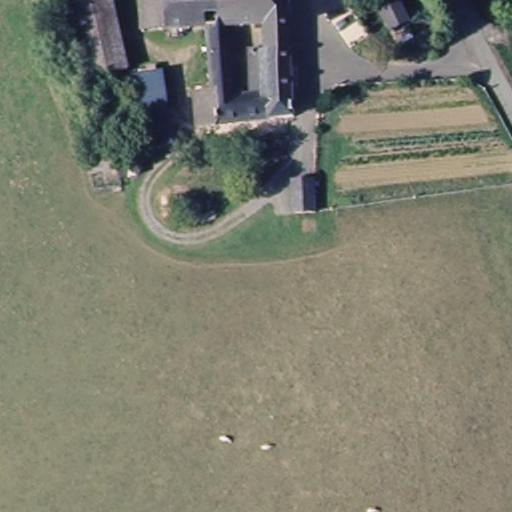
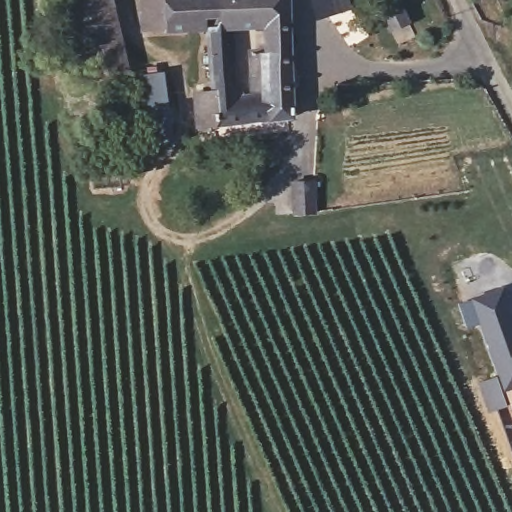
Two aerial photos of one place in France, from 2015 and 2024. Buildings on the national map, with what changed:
unchanged [(73,0),(114,0),(129,65),(107,69),(87,72),(73,0)]
unchanged [(215,118),(196,119),(194,85),(212,84),(207,29),(146,34),(143,0),(289,0),(292,113),(215,118)]
unchanged [(323,9),(320,0),(349,0),(350,3),(323,9)]
unchanged [(151,71),(150,62),(160,60),(161,69),(166,69),(177,139),(144,144),(133,74),(151,71)]
unchanged [(134,140),(137,162),(122,164),(105,167),(102,145),(119,143),(134,140)]
unchanged [(293,221),(292,184),(316,183),(316,215),(316,222),(293,224),(293,221)]
new [(512,387),(502,391),(468,298),(502,285),(512,311),(512,387)]

